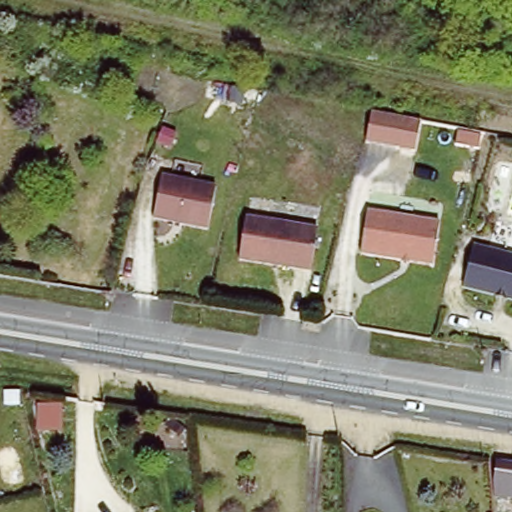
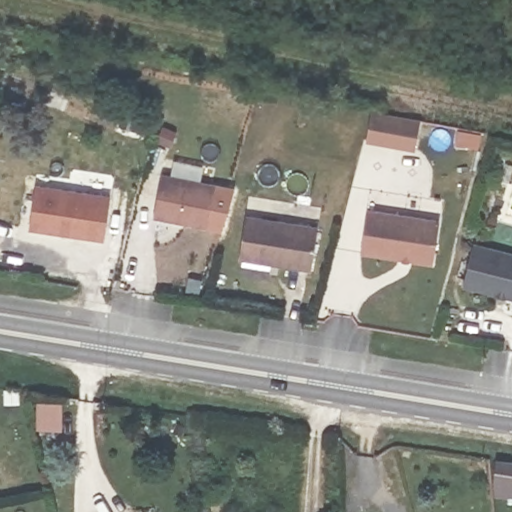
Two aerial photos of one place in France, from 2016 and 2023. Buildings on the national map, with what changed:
unchanged [(390,120),(424,125),(418,155),(368,144),(375,115),(390,120)]
unchanged [(459,136),(484,139),(481,154),(458,150),(459,136)]
unchanged [(159,177),(213,186),(205,228),(152,219),(159,177)]
new [(105,242),(30,231),(38,185),(112,196),(105,242)]
unchanged [(364,213),(437,225),(429,268),(357,255),(364,213)]
unchanged [(249,219),(319,232),(313,273),(241,262),(249,219)]
unchanged [(474,248),(512,257),(512,301),(506,299),(495,297),(463,289),(474,248)]
unchanged [(489,483),(493,458),(512,461),(512,507),(492,504),(489,483)]

